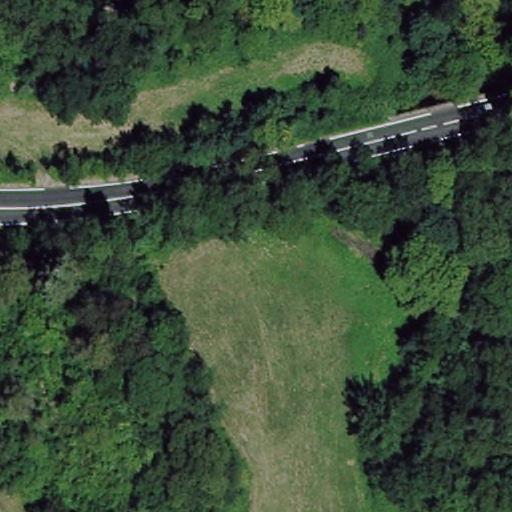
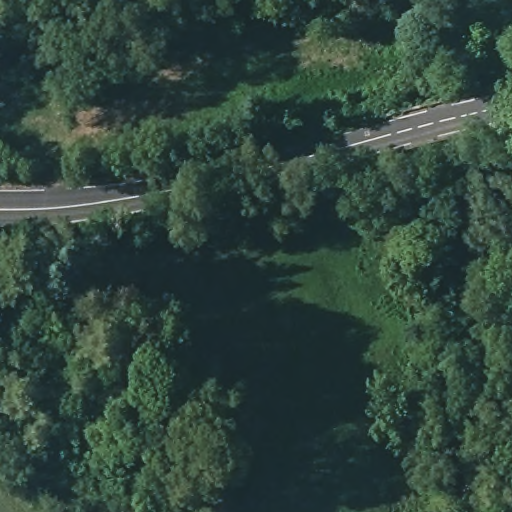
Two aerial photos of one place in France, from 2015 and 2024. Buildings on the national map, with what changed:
[]

